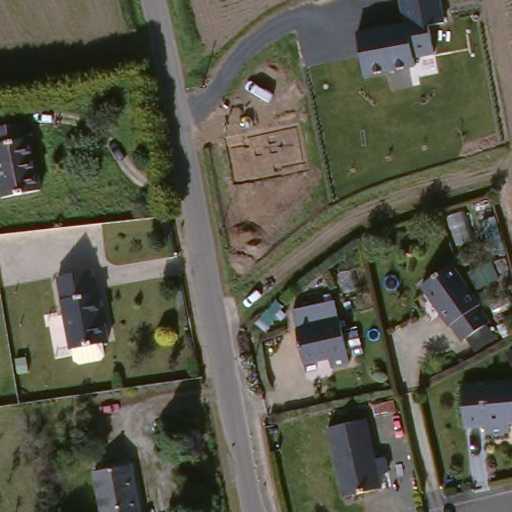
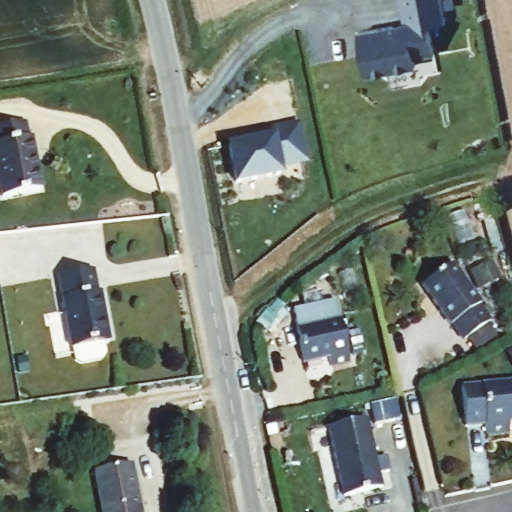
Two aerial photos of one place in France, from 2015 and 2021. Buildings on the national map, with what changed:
unchanged [(435,54),(415,59),(417,66),(367,76),(358,33),(404,22),(400,0),(442,0),(446,21),(428,26),(435,54)]
unchanged [(0,125),(27,120),(30,134),(35,134),(42,186),(4,195),(0,176),(0,125)]
new [(248,150),(246,143),(299,129),(308,166),(282,173),(283,180),(240,190),(230,154),(248,150)]
unchanged [(449,259),(477,296),(475,298),(488,317),(463,332),(452,315),(447,317),(422,278),(449,259)]
unchanged [(91,267),(95,289),(99,289),(109,339),(72,347),(57,273),(91,267)]
unchanged [(300,338),(295,319),(338,309),(343,329),(345,329),(355,373),(335,378),(333,367),(306,373),(299,339),(300,338)]
unchanged [(512,379),(512,419),(508,419),(510,429),(486,431),(483,421),(465,422),(460,383),(512,379)]
unchanged [(365,417),(367,432),(370,431),(382,483),(343,494),(328,425),(365,417)]
unchanged [(129,464),(140,512),(102,512),(92,472),(129,464)]

